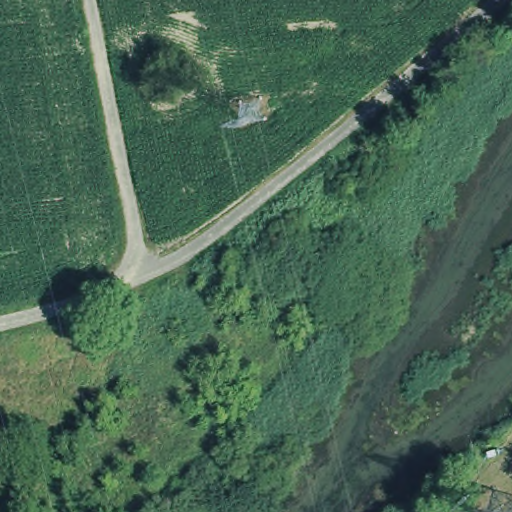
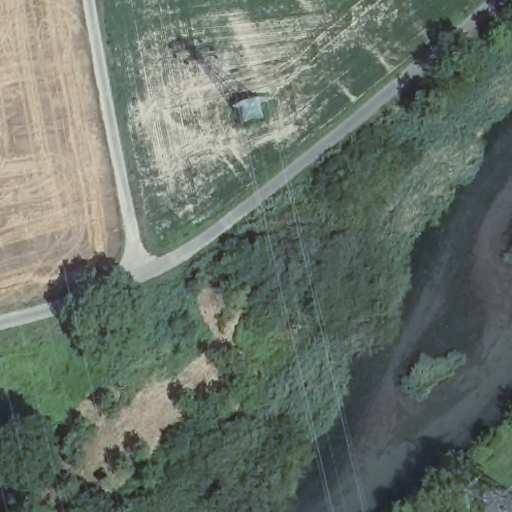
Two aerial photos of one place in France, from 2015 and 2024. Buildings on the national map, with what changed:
unchanged [(224,101),(215,101),(214,92),(224,91),(224,101)]

